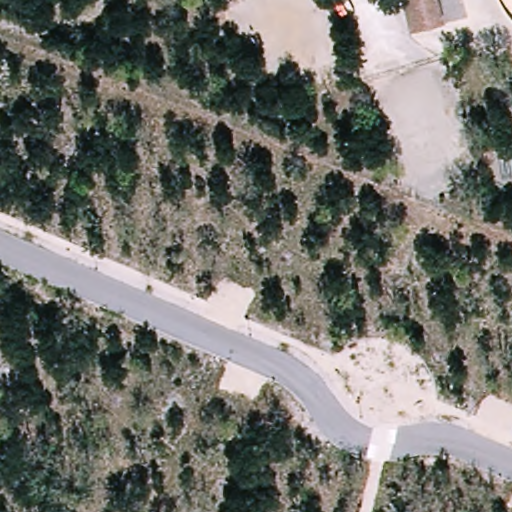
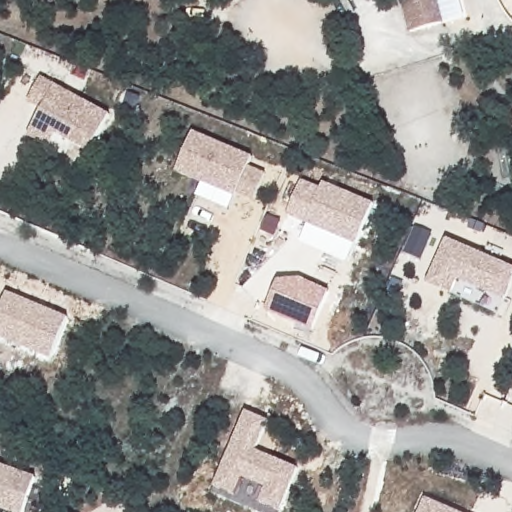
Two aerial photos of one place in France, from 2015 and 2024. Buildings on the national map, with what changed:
unchanged [(433,25),(406,32),(398,0),(427,0),(433,25)]
new [(49,149),(28,136),(41,111),(27,102),(41,77),(56,86),(111,116),(90,154),(57,136),(49,149)]
new [(253,157),(250,166),(266,175),(255,201),(237,193),(235,197),(176,171),(193,132),(253,157)]
new [(300,242),(308,225),(286,216),(302,180),(321,188),(325,182),(375,204),(349,263),(300,242)]
new [(421,260),(405,253),(416,227),(432,235),(421,260)]
new [(512,266),(512,286),(505,301),(458,279),(452,295),(427,282),(447,237),(512,266)]
new [(265,312),(278,281),(302,278),(330,291),(312,332),(265,312)]
new [(0,338),(0,309),(7,292),(69,318),(50,359),(0,338)]
new [(39,484),(28,512),(1,512),(0,512),(0,469),(39,484)]
new [(459,512),(418,512),(425,497),(459,512)]

